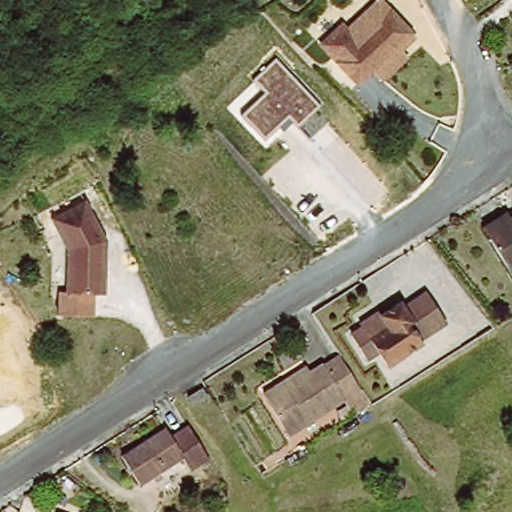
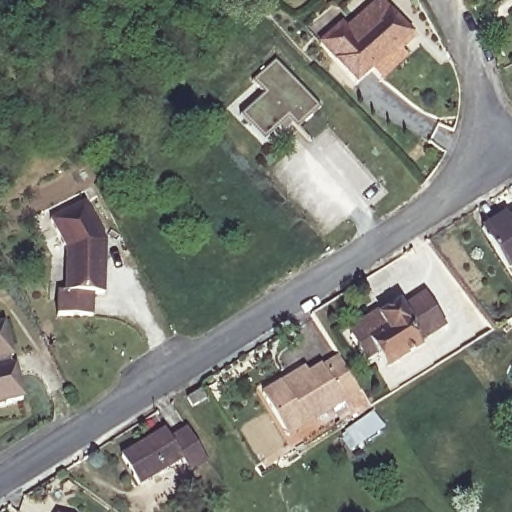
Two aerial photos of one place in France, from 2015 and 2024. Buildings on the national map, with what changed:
unchanged [(346,31),(379,0),(384,0),(419,39),(406,50),(411,58),(382,82),(375,74),(357,87),(320,45),(340,27),(346,31)]
unchanged [(296,127),(289,119),(265,141),(241,117),(266,94),(254,81),(276,60),(319,106),(296,127)]
unchanged [(107,241),(104,294),(93,294),(92,316),(58,315),(58,291),(65,291),(67,249),(51,218),(86,200),(107,241)]
unchanged [(507,214),(511,219),(512,219),(512,266),(509,268),(484,228),(507,214)]
unchanged [(354,335),(366,327),(364,324),(381,313),(384,316),(403,303),(407,309),(431,293),(451,323),(424,341),(426,344),(392,367),(383,353),(369,360),(354,335)]
new [(3,324),(23,398),(5,403),(0,405),(0,325),(3,324)]
unchanged [(348,400),(281,444),(253,403),(274,391),(295,376),(299,382),(313,372),(316,375),(345,356),(365,388),(377,406),(358,415),(348,400)]
unchanged [(193,405),(187,397),(201,387),(207,395),(193,405)]
unchanged [(141,469),(131,453),(163,433),(171,445),(193,432),(213,464),(151,502),(133,473),(141,469)]

